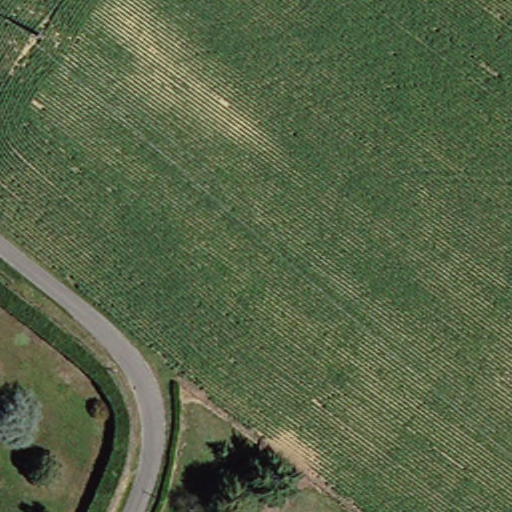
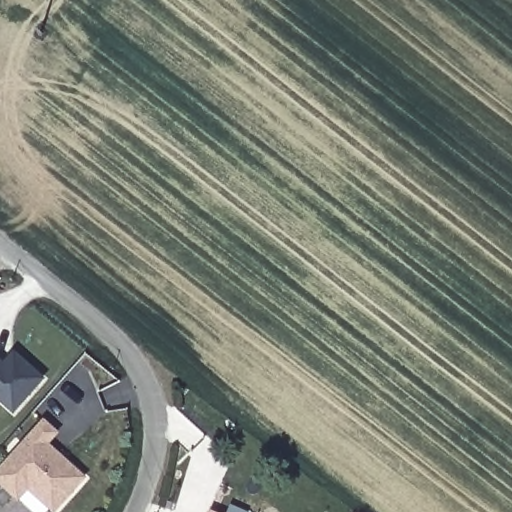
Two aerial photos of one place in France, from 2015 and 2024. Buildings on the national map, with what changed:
new [(17,356),(45,381),(16,413),(0,399),(0,366),(5,370),(17,356)]
new [(47,446),(57,455),(85,480),(56,512),(52,512),(29,490),(18,501),(0,485),(0,473),(45,424),(57,435),(47,446)]

